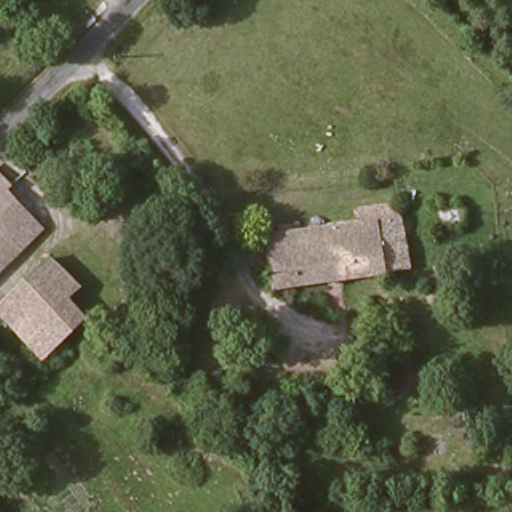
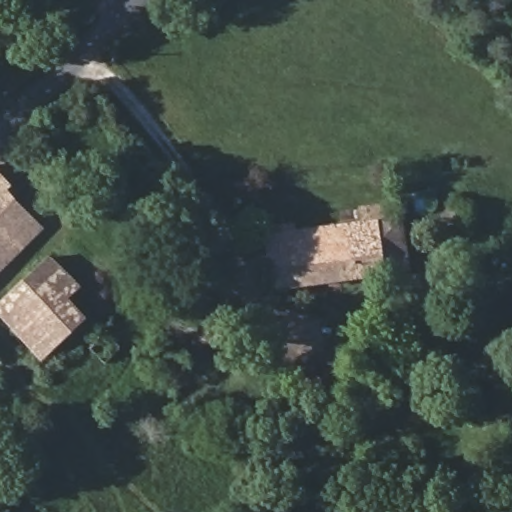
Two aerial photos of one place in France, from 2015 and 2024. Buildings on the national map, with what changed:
unchanged [(1,194),(0,195),(0,176),(10,186),(1,194)]
unchanged [(0,195),(1,194),(39,235),(19,252),(0,232),(0,195)]
unchanged [(277,293),(271,240),(365,230),(363,220),(361,213),(402,209),(405,216),(406,225),(415,270),(396,275),(380,280),(277,293)]
unchanged [(0,271),(0,232),(19,252),(0,271)]
unchanged [(70,304),(86,323),(45,359),(0,312),(0,310),(51,263),(80,292),(70,304)]

